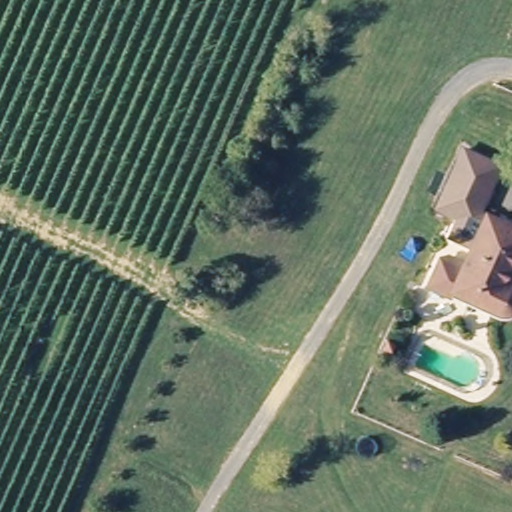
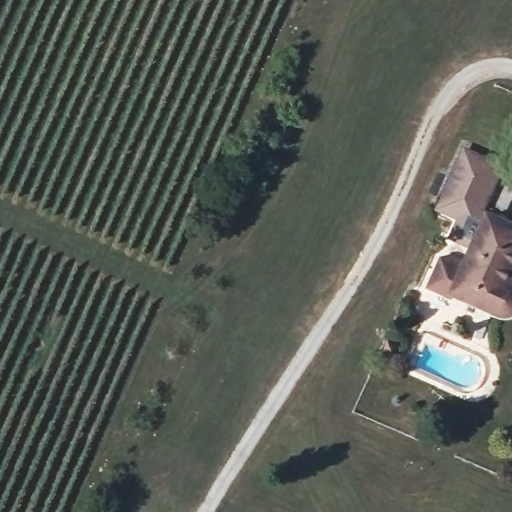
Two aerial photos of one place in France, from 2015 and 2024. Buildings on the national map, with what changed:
unchanged [(507,171),(487,216),(512,227),(512,287),(511,288),(512,288),(512,313),(465,293),(462,297),(439,287),(451,258),(473,268),(481,250),(458,240),(466,220),(445,211),(470,154),(507,171)]

